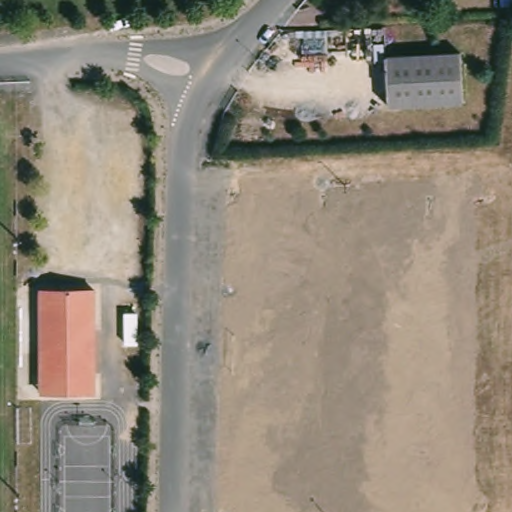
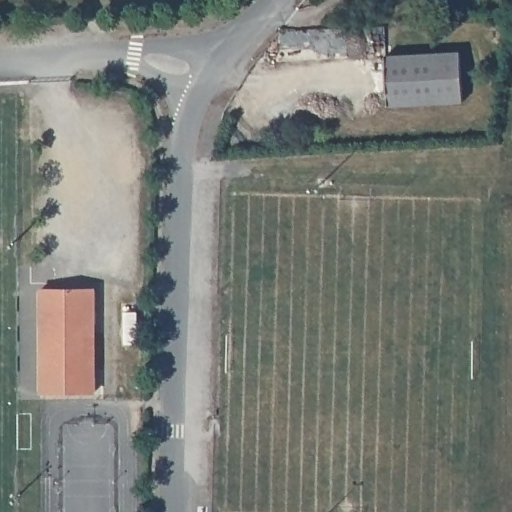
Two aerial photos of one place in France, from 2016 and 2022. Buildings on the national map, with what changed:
unchanged [(463,52),(466,102),(391,106),(388,56),(463,52)]
unchanged [(58,290),(59,391),(44,392),(43,290),(58,290)]
unchanged [(99,391),(59,391),(58,290),(99,290),(99,312),(99,378),(99,391)]

